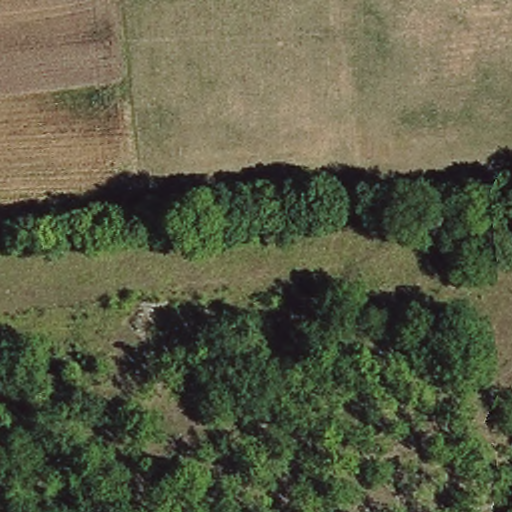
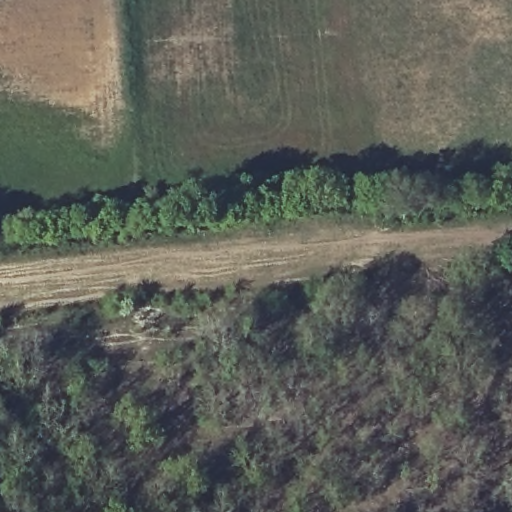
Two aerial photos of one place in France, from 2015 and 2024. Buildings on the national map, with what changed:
[]

